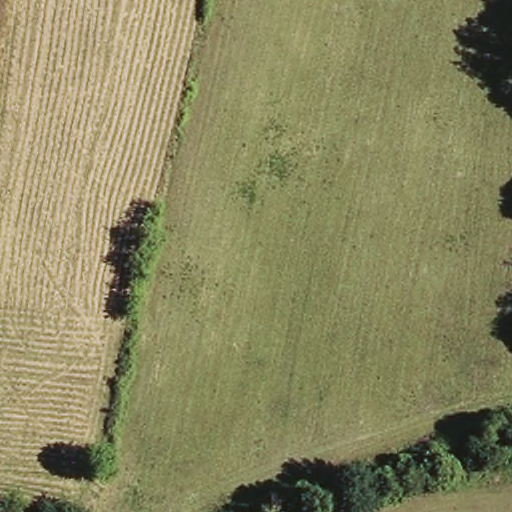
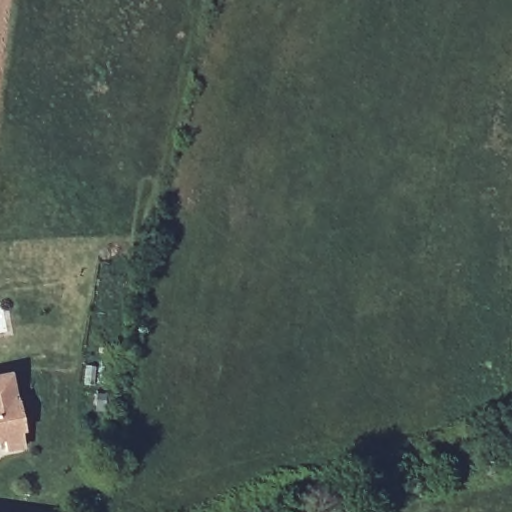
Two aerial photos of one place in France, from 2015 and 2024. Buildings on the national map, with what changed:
new [(4,451),(3,443),(0,444),(0,375),(12,372),(27,447),(4,451)]

